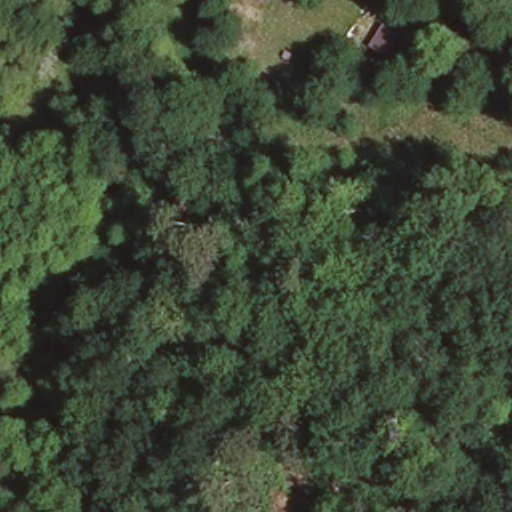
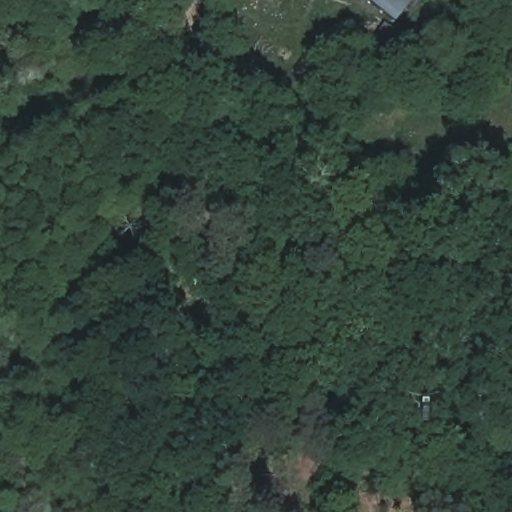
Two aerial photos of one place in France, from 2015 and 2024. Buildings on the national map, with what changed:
new [(395,21),(367,0),(413,0),(395,21)]

